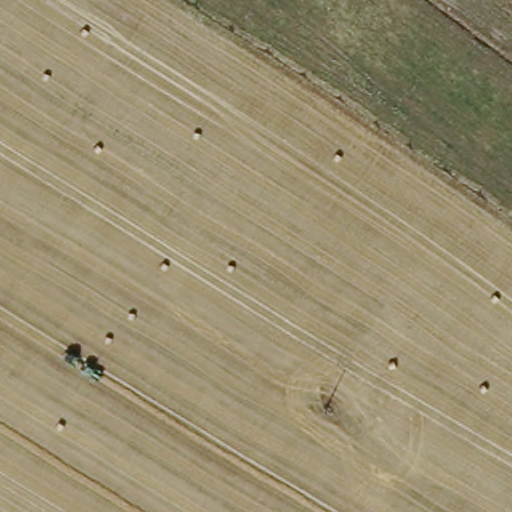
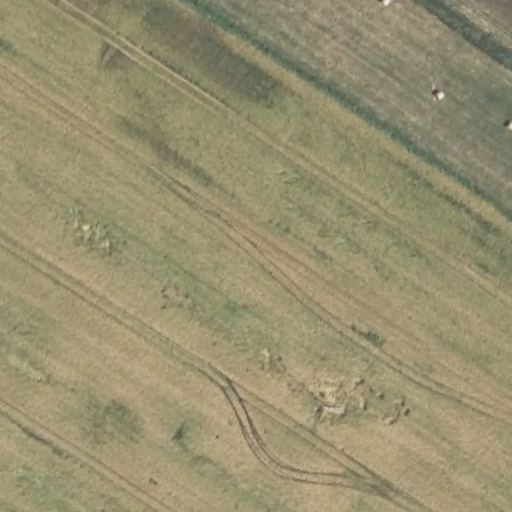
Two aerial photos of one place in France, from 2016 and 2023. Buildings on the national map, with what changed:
[]

